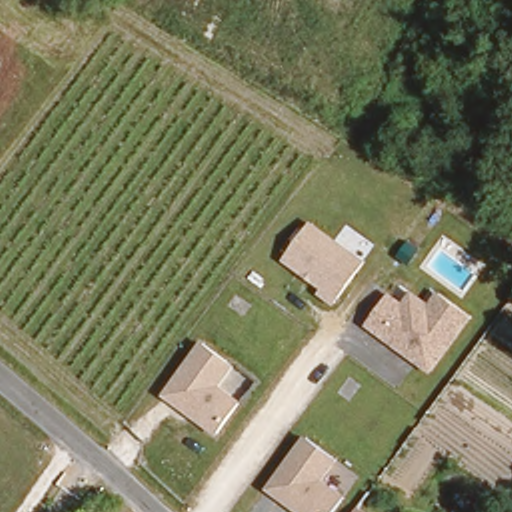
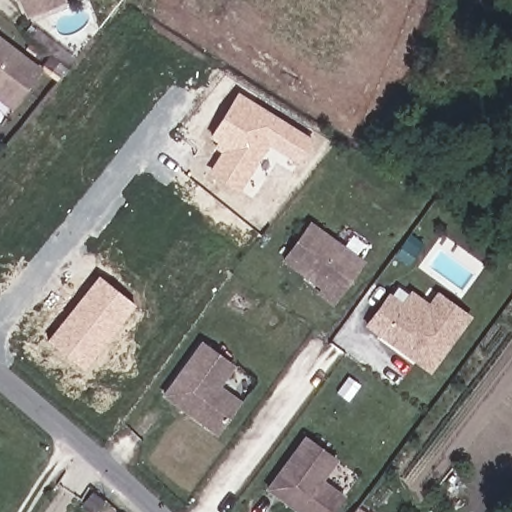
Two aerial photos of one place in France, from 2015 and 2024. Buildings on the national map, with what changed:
new [(66,3),(26,18),(20,0),(65,0),(66,1),(66,3)]
new [(0,100),(0,36),(42,69),(12,109),(0,100)]
new [(239,192),(209,174),(222,151),(215,148),(217,143),(210,138),(237,92),(313,139),(298,163),(268,145),(239,192)]
unchanged [(311,222),(367,262),(334,305),(317,294),(320,288),(282,261),(311,222)]
new [(135,305),(85,370),(47,341),(98,275),(135,305)]
unchanged [(390,293),(405,300),(412,293),(431,301),(439,292),(474,318),(430,372),(367,325),(390,293)]
unchanged [(243,402),(216,436),(164,393),(201,341),(237,367),(222,385),(243,402)]
unchanged [(340,460),(327,481),(345,495),(333,512),(299,512),(266,488),(305,437),(340,460)]
unchanged [(358,503),(368,512),(352,512),(358,503)]

